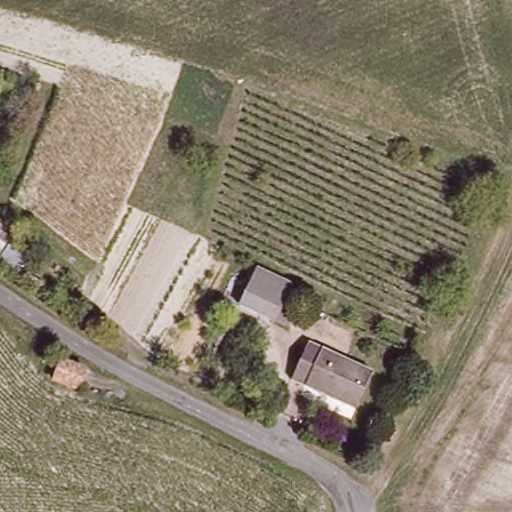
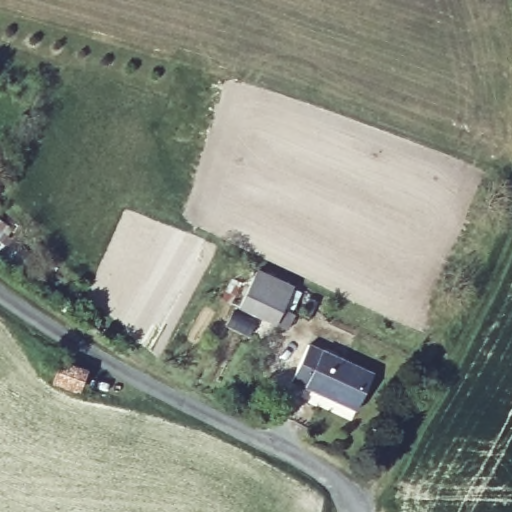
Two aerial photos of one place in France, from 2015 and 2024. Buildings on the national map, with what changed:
unchanged [(281,314),(289,319),(283,331),(241,308),(259,274),(293,293),(281,314)]
unchanged [(356,413),(295,383),(311,348),(373,379),(356,413)]
unchanged [(83,392),(54,384),(59,362),(88,371),(83,392)]

